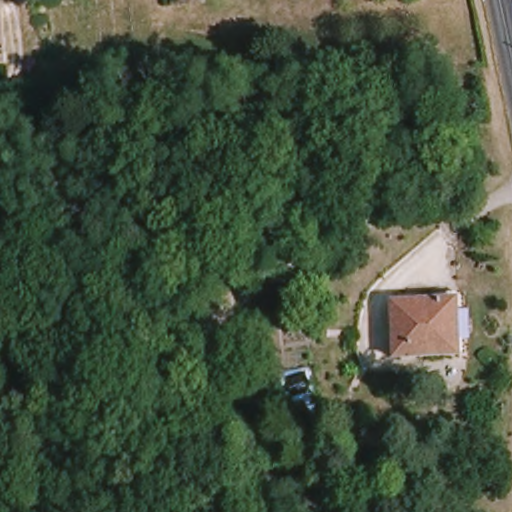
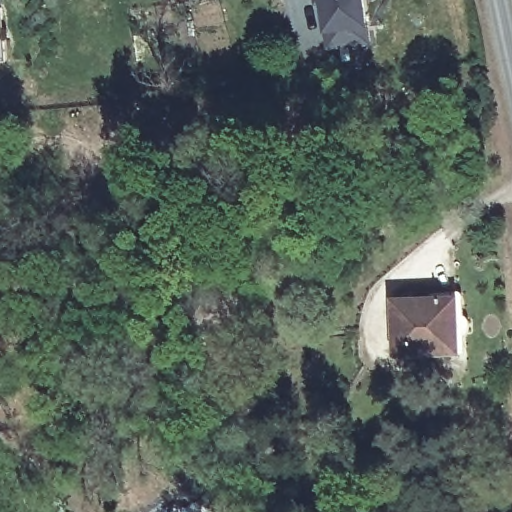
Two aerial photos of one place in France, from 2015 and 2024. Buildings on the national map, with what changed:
new [(326,46),(320,0),(314,1),(314,0),(363,0),(369,40),(326,46)]
unchanged [(2,64),(0,65),(0,21),(2,64)]
unchanged [(462,295),(465,358),(393,358),(390,298),(462,295)]

